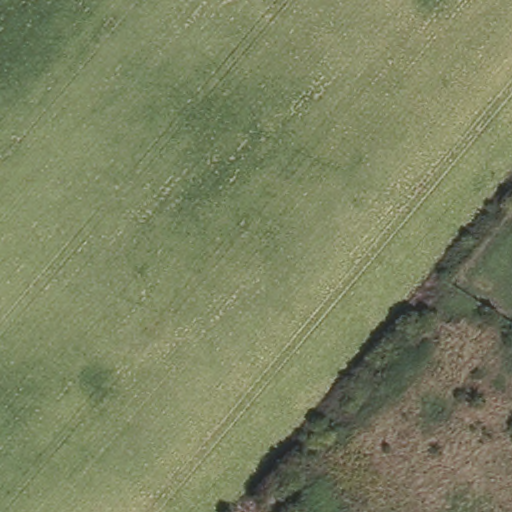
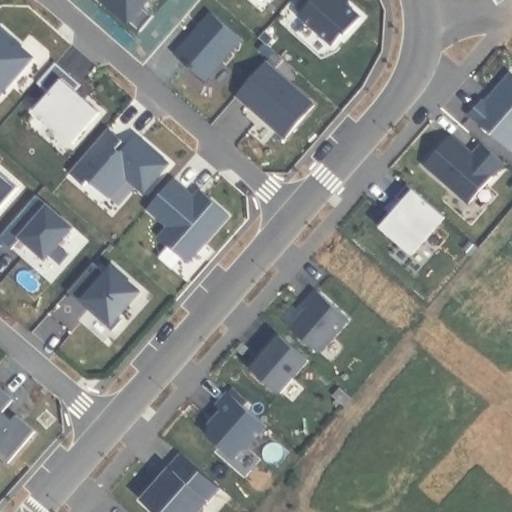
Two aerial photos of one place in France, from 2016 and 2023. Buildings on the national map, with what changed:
new [(153,20),(140,35),(130,28),(127,30),(95,0),(152,0),(143,11),(153,20)]
new [(348,34),(347,33),(336,45),(302,15),(307,10),(294,0),(343,0),(362,18),(348,34)]
new [(177,54),(212,12),(242,39),(206,79),(177,54)]
new [(32,62),(0,100),(0,35),(32,62)]
new [(316,105),(288,138),(238,95),(267,62),(316,105)]
new [(82,86),(77,93),(101,114),(74,145),(37,113),(51,95),(39,85),(57,64),(82,86)]
new [(510,74),(512,76),(512,150),(475,117),(510,74)]
new [(110,128),(125,141),(121,145),(125,149),(138,135),(171,164),(146,193),(127,178),(110,197),(91,180),(86,184),(72,173),(110,128)]
new [(452,136),(476,156),(486,144),(507,163),(471,204),(427,164),(452,136)]
new [(19,189),(0,209),(0,170),(19,189)]
new [(197,197),(203,190),(232,217),(190,263),(162,237),(171,227),(149,209),(176,179),(197,197)]
new [(72,218),(59,234),(67,243),(44,265),(4,233),(41,191),(72,218)]
new [(445,224),(412,261),(381,235),(402,209),(396,204),(408,192),(445,224)]
new [(72,288),(97,259),(110,270),(117,264),(144,289),(122,312),(127,315),(117,327),(72,288)]
new [(292,324),(324,290),(351,315),(318,351),(292,324)]
new [(282,393),(254,368),(264,357),(261,354),(280,334),(310,361),(282,393)]
new [(15,396),(4,408),(14,417),(18,412),(37,428),(10,459),(0,451),(0,384),(15,396)]
new [(341,392),(347,398),(342,403),(336,398),(341,392)]
new [(268,426),(250,449),(247,446),(237,458),(211,437),(211,426),(225,410),(219,404),(230,393),(268,426)]
new [(145,500),(184,456),(221,489),(200,512),(158,512),(145,500)]

